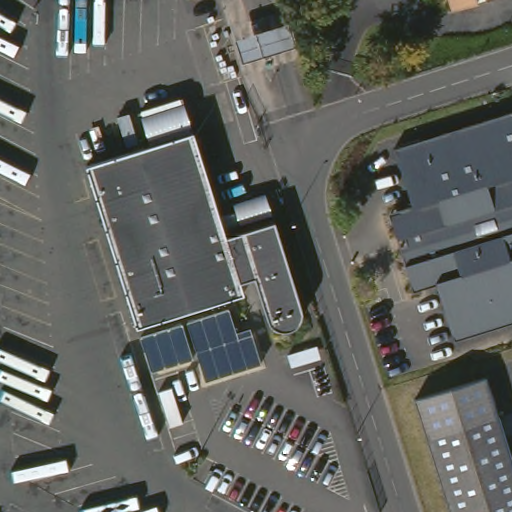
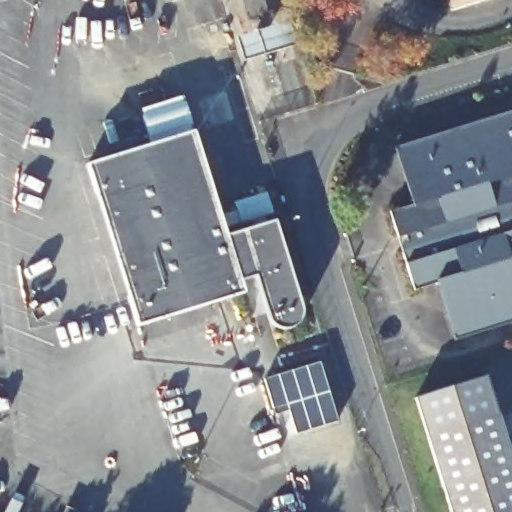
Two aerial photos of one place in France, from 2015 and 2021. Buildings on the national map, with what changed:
unchanged [(455,0),(482,0),(458,8),(455,0)]
unchanged [(420,201),(400,140),(512,105),(512,325),(463,340),(444,280),(418,287),(394,209),(420,201)]
unchanged [(204,132),(239,235),(283,222),(312,307),(312,315),(310,320),(307,323),(300,327),(293,328),(286,327),(281,323),(277,318),(262,275),(249,280),(253,292),(149,324),(95,165),(204,132)]
unchanged [(415,400),(486,378),(496,413),(437,431),(426,435),(415,400)]
unchanged [(496,413),(509,409),(512,419),(512,512),(462,512),(437,431),(496,413)]

